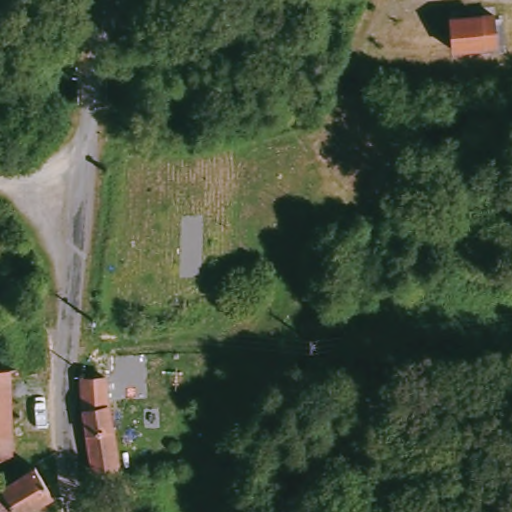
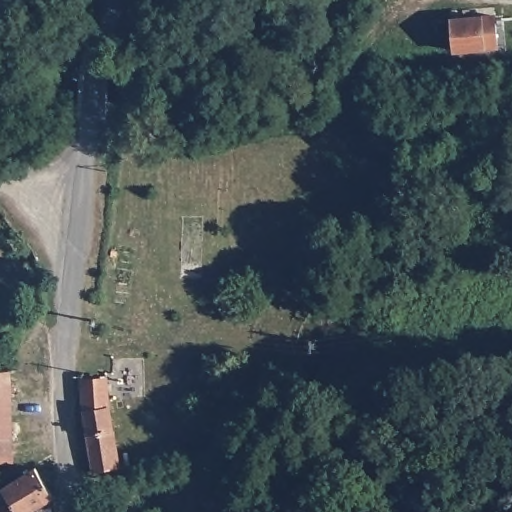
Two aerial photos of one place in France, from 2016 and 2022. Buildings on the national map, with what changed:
unchanged [(451,19),(497,15),(500,45),(454,49),(451,19)]
unchanged [(34,165),(41,165),(45,168),(47,181),(28,183),(28,170),(34,165)]
unchanged [(0,460),(0,367),(13,367),(12,463),(6,465),(6,460),(0,460)]
unchanged [(110,372),(110,397),(119,460),(91,465),(84,399),(85,372),(110,372)]
unchanged [(11,512),(0,512),(0,490),(10,487),(4,482),(36,465),(56,498),(11,512)]
unchanged [(144,512),(114,512),(132,501),(144,512)]

